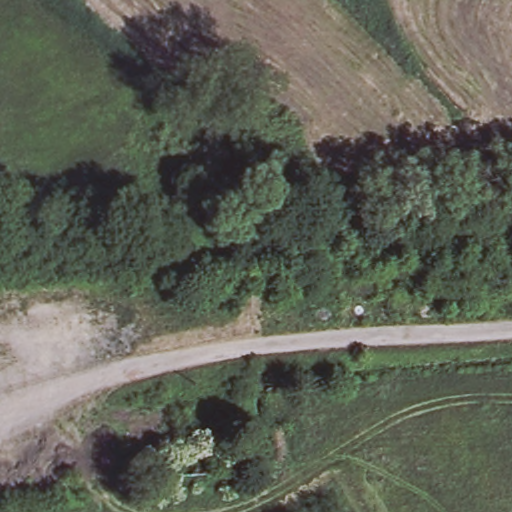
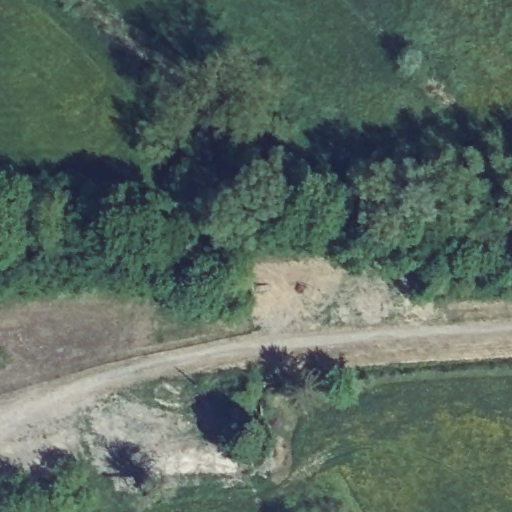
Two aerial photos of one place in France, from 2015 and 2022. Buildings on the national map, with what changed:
[]

